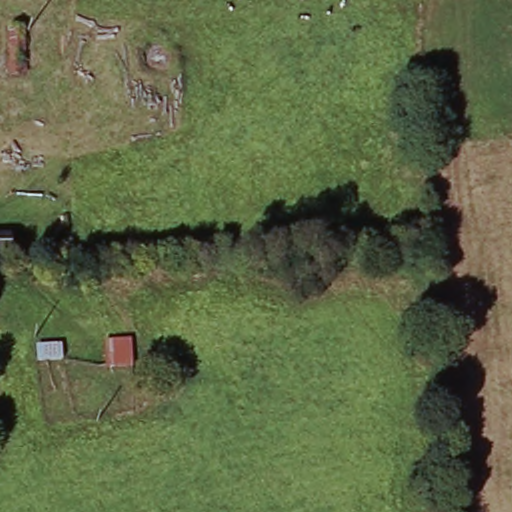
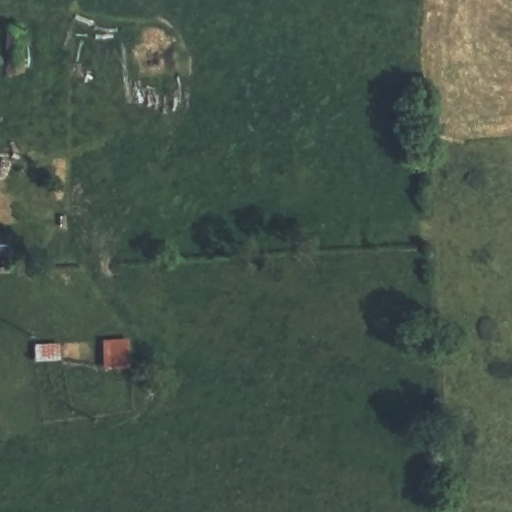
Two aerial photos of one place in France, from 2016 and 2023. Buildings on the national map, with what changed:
unchanged [(25,29),(29,76),(10,78),(7,29),(25,29)]
unchanged [(14,260),(0,261),(0,240),(12,240),(14,260)]
unchanged [(59,345),(59,358),(35,361),(34,347),(59,345)]
unchanged [(129,347),(130,365),(105,365),(106,347),(129,347)]

